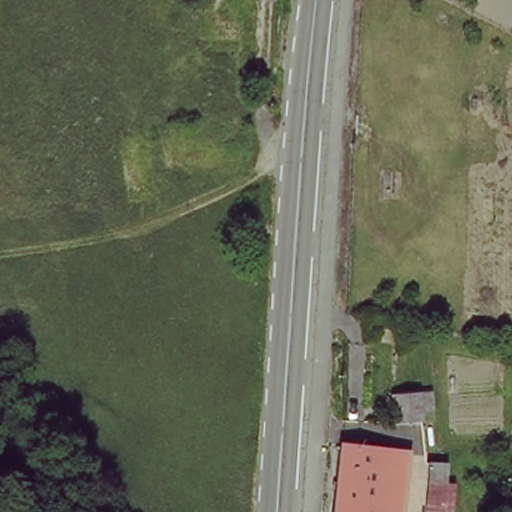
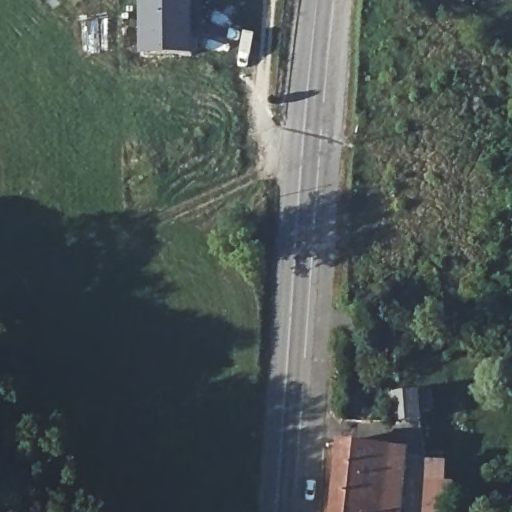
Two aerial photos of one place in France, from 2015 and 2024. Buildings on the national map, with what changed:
new [(142,57),(141,0),(195,0),(195,56),(142,57)]
unchanged [(387,398),(413,396),(418,422),(392,425),(387,398)]
unchanged [(405,457),(405,479),(401,512),(332,512),(338,445),(405,457)]
unchanged [(427,512),(427,484),(451,482),(452,490),(452,512),(427,512)]

